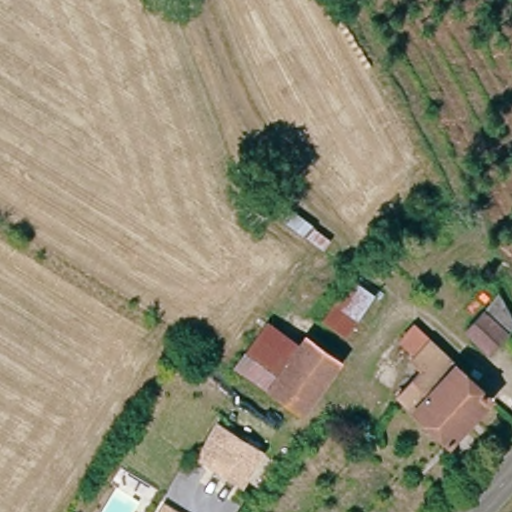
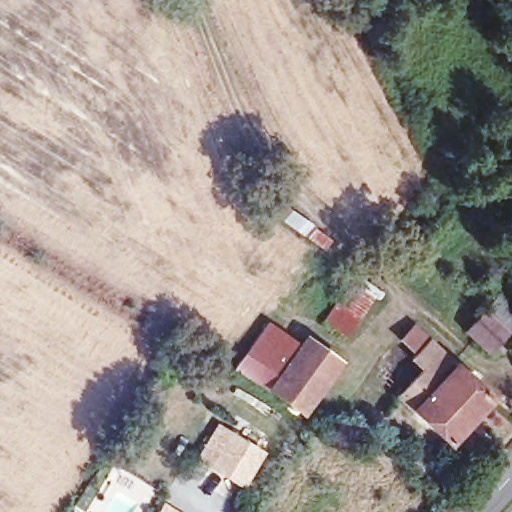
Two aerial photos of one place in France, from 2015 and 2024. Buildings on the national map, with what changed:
unchanged [(380,287),(345,335),(319,319),(348,269),(380,287)]
unchanged [(496,293),(507,312),(495,323),(502,332),(483,351),(461,329),(496,293)]
unchanged [(493,394),(453,436),(405,392),(429,366),(418,356),(422,351),(406,336),(418,324),(493,394)]
unchanged [(313,357),(285,399),(253,378),(282,335),(313,357)]
unchanged [(237,481),(207,462),(194,454),(214,421),(226,428),(257,447),(237,481)]
unchanged [(165,502),(182,512),(160,512),(165,502)]

